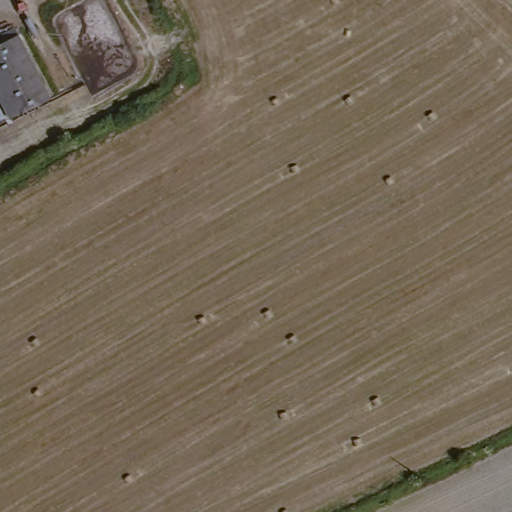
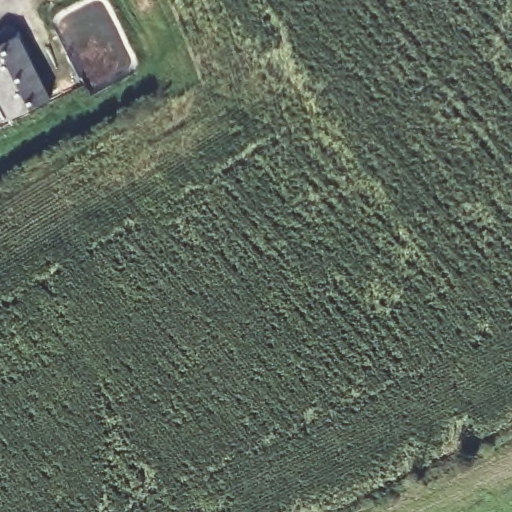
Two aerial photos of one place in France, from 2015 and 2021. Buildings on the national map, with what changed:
unchanged [(0,42),(22,32),(54,101),(0,130),(0,42)]

